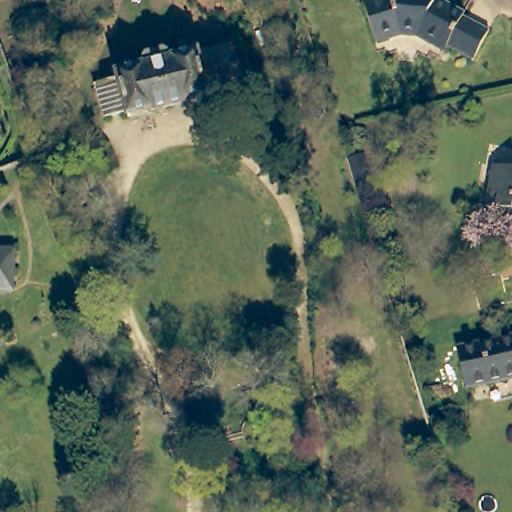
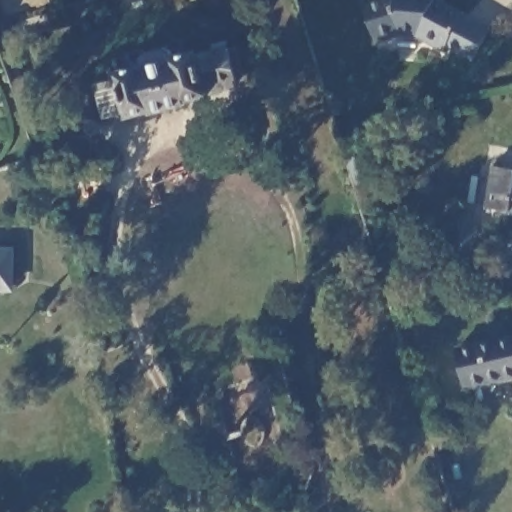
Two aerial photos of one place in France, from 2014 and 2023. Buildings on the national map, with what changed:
unchanged [(450,45),(446,51),(421,37),(400,34),(375,40),(362,0),(439,0),(439,1),(446,5),(447,2),(466,12),(465,15),(490,29),(473,58),(450,45)]
unchanged [(113,84),(137,77),(136,72),(160,66),(159,57),(162,51),(184,45),(190,50),(192,58),(217,51),(219,54),(246,46),(256,82),(227,90),(228,94),(205,100),(205,102),(170,112),(169,110),(147,115),(147,112),(122,119),(113,84)]
unchanged [(353,166),(370,161),(378,188),(361,193),(353,166)]
unchanged [(497,212),(480,210),(487,169),(512,173),(512,231),(495,228),(497,212)]
unchanged [(11,253),(11,286),(0,286),(0,253),(11,253)]
unchanged [(455,351),(512,339),(512,380),(464,391),(455,351)]

